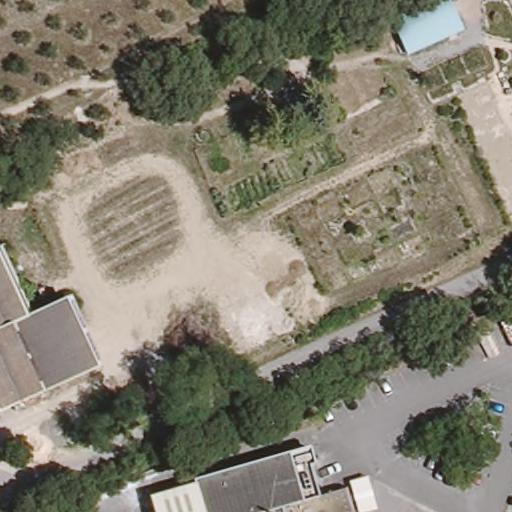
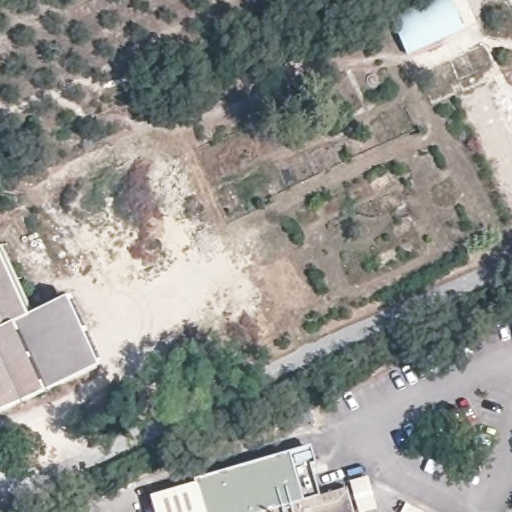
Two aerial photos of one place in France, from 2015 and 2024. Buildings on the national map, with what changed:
unchanged [(440,0),(451,0),(467,30),(410,55),(394,20),(440,0)]
unchanged [(34,314),(72,297),(104,366),(4,412),(0,404),(0,241),(34,314)]
unchanged [(151,495),(196,481),(195,478),(311,445),(316,463),(312,464),(321,496),(347,488),(355,512),(156,512),(151,495)]

